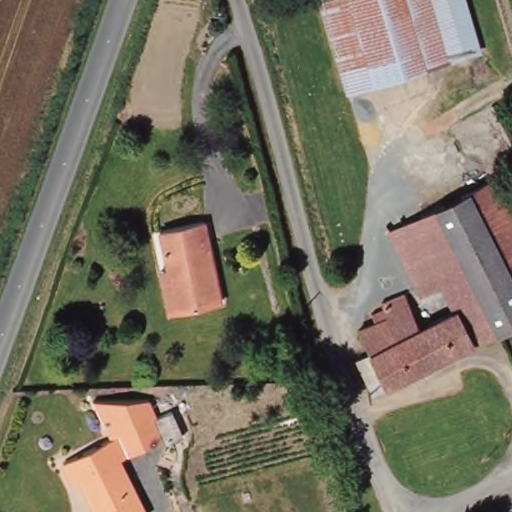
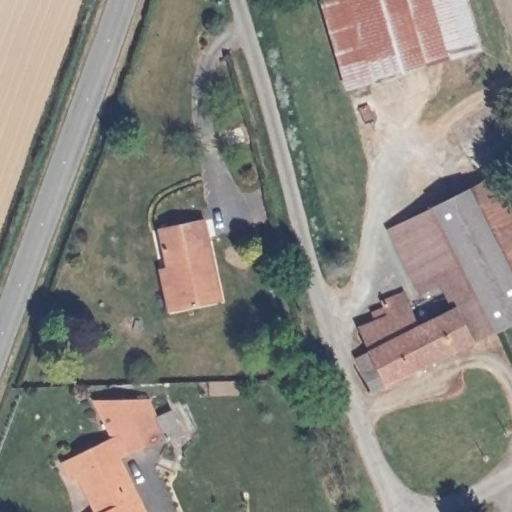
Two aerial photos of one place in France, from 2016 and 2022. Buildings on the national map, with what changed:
unchanged [(357,83),(332,0),(461,0),(476,49),(415,67),(357,83)]
unchanged [(496,179),(512,212),(512,323),(496,331),(467,267),(474,263),(497,253),(470,191),(496,179)]
unchanged [(497,253),(474,263),(467,267),(496,331),(370,391),(356,359),(368,353),(358,327),(376,320),(374,313),(384,308),(382,303),(403,293),(419,325),(455,308),(442,284),(420,294),(391,228),(470,191),(497,253)]
unchanged [(160,271),(167,268),(156,229),(205,216),(226,295),(183,307),(170,310),(160,271)]
unchanged [(91,400),(151,398),(158,416),(175,410),(185,436),(122,457),(147,512),(92,512),(77,482),(70,483),(60,462),(110,438),(91,400)]

